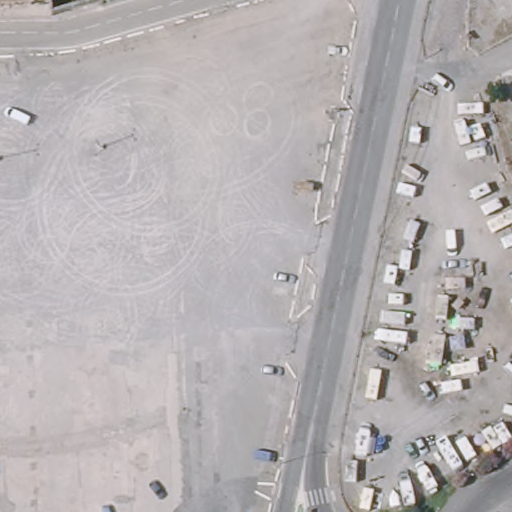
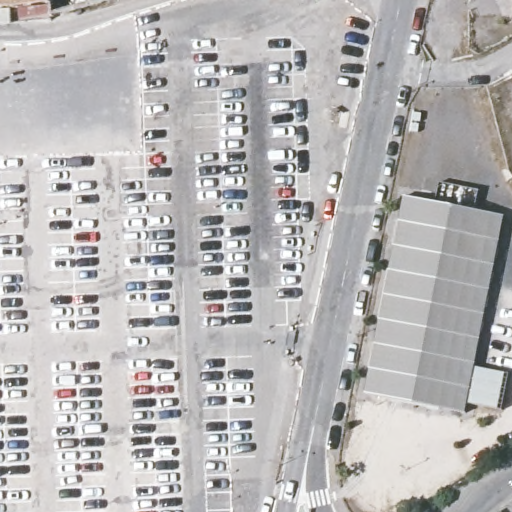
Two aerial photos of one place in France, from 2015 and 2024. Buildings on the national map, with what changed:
unchanged [(46,3),(48,7),(19,12),(0,12),(0,0),(56,0),(46,3)]
new [(405,195),(437,202),(440,182),(480,190),(476,210),(505,215),(475,367),(509,374),(502,408),(467,402),(465,411),(365,391),(405,195)]

